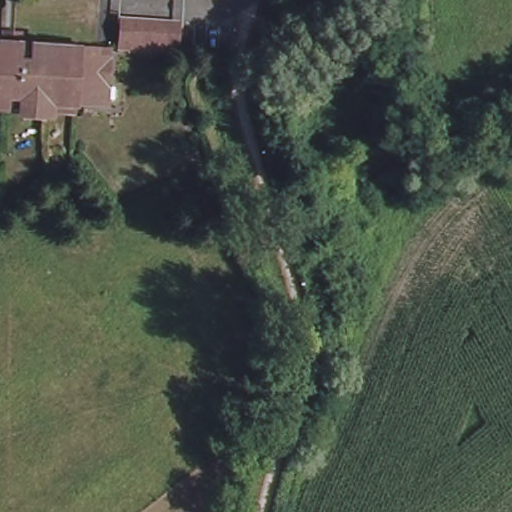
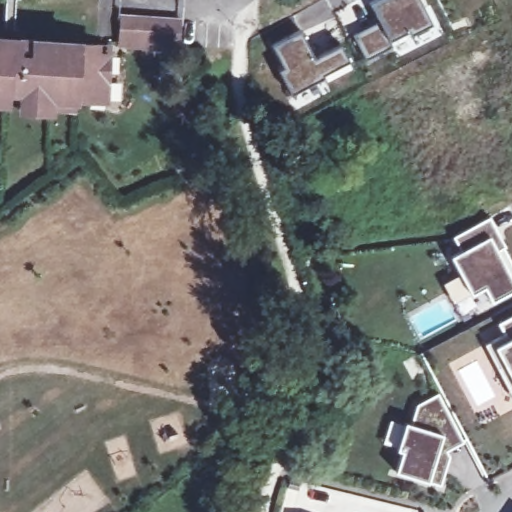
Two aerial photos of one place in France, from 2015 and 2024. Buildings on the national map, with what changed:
new [(326,0),(335,17),(302,33),(291,15),(320,0),(326,0)]
new [(376,21),(366,2),(371,0),(422,0),(435,25),(392,46),(365,60),(351,34),(376,21)]
unchanged [(125,42),(127,13),(184,17),(182,46),(125,42)]
unchanged [(10,34),(10,24),(20,24),(20,35),(107,40),(117,41),(116,49),(113,100),(58,98),(56,111),(11,108),(11,103),(0,103),(0,34),(10,34)]
new [(300,31),(314,57),(341,43),(354,67),(333,79),(330,75),(288,95),(276,71),(282,68),(270,45),(300,31)]
new [(490,217),(498,232),(506,246),(497,251),(512,278),(512,290),(491,301),(484,287),(471,293),(451,256),(461,250),(453,236),(490,217)]
new [(483,344),(503,334),(497,323),(512,316),(512,399),(500,376),(483,344)]
new [(397,449),(405,422),(410,423),(417,403),(438,392),(456,427),(464,441),(447,450),(450,455),(441,484),(395,470),(401,450),(397,449)]

